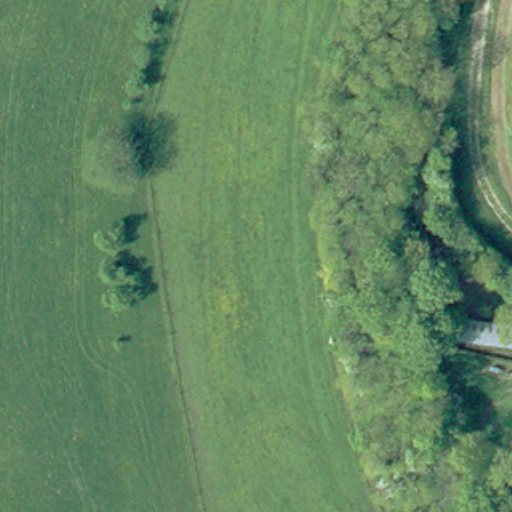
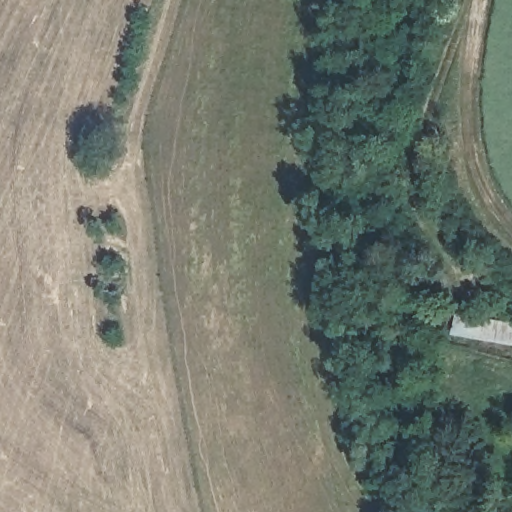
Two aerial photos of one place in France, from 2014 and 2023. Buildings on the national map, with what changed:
unchanged [(460,335),(463,315),(512,325),(512,344),(460,335)]

